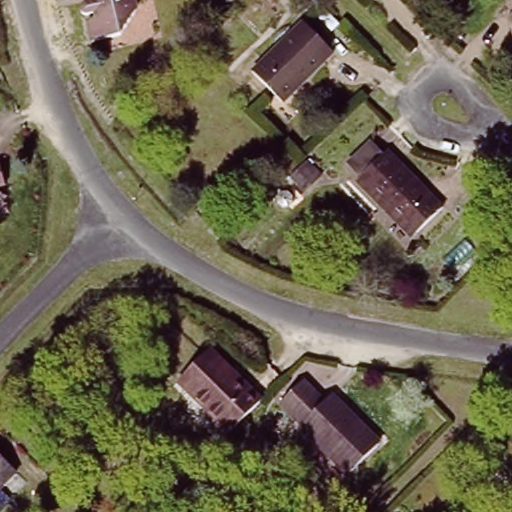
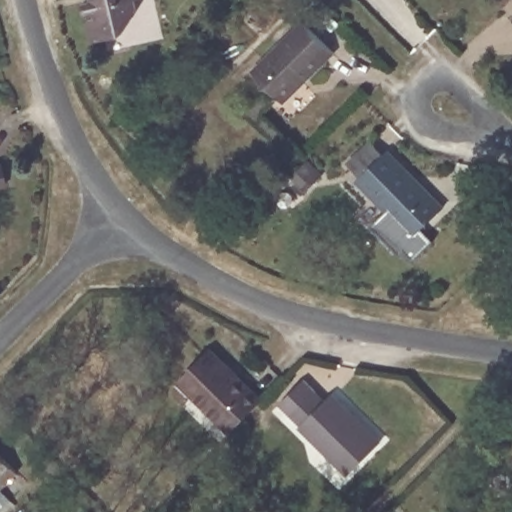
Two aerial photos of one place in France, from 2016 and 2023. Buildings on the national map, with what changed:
unchanged [(86,11),(98,8),(97,4),(85,7),(83,0),(134,0),(134,9),(121,27),(92,35),(86,11)]
unchanged [(331,40),(281,90),(251,60),(301,10),(331,40)]
unchanged [(412,235),(390,212),(358,180),(390,149),(444,205),(420,229),(413,235),(412,235)]
unchanged [(4,161),(10,185),(0,188),(0,162),(4,161)]
unchanged [(214,238),(196,224),(210,210),(227,225),(214,238)]
unchanged [(231,428),(179,376),(206,348),(213,342),(240,370),(265,395),(231,428)]
unchanged [(306,375),(326,395),(333,389),(382,441),(350,471),(281,399),(306,375)]
unchanged [(17,466),(0,483),(0,449),(17,466)]

